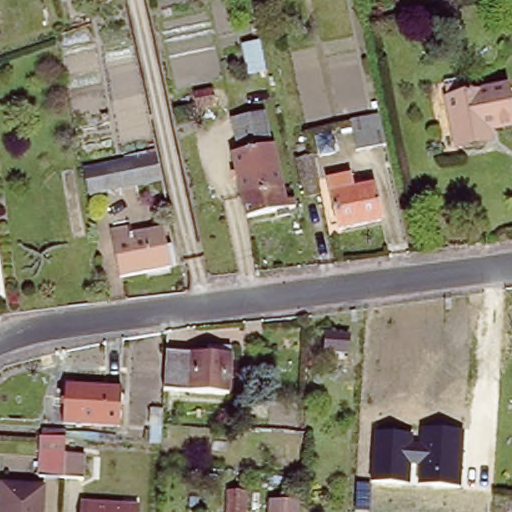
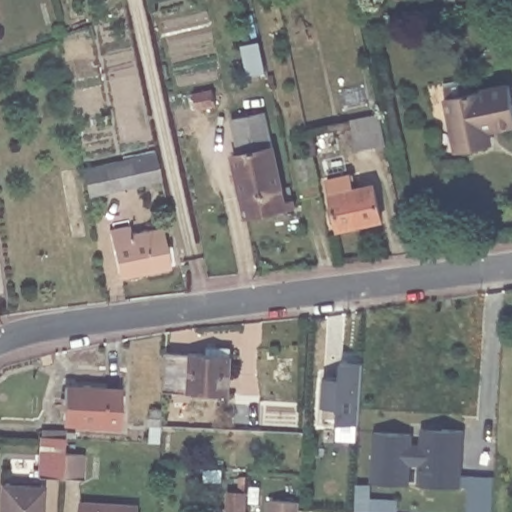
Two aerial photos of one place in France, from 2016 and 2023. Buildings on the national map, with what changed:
unchanged [(243,72),(249,71),(257,70),(258,73),(244,76),(243,72)]
unchanged [(459,138),(449,88),(447,78),(470,74),(472,83),(485,80),(510,75),(512,86),(512,116),(491,120),(494,131),(487,132),(459,138)]
unchanged [(196,95),(215,91),(218,106),(199,110),(196,95)]
unchanged [(290,196),(291,204),(243,215),(238,193),(230,151),(236,150),(229,115),(263,108),(279,185),(281,198),(290,196)]
unchanged [(388,143),(359,149),(353,120),(381,114),(388,143)]
unchanged [(110,117),(111,124),(106,125),(104,118),(110,117)]
unchanged [(118,164),(125,163),(159,155),(165,180),(130,187),(90,196),(85,171),(118,164)]
unchanged [(330,190),(314,193),(309,166),(314,165),(324,163),(325,166),(330,190)]
unchanged [(365,196),(385,192),(393,227),(350,236),(339,186),(362,182),(365,196)]
unchanged [(173,267),(124,278),(114,231),(133,227),(134,233),(164,227),(173,267)]
unchanged [(169,393),(172,353),(213,356),(213,348),(236,350),(235,357),(233,397),(169,393)]
new [(361,423),(359,437),(339,435),(344,423),(339,423),(339,408),(323,407),(324,376),(342,377),(344,363),(368,363),(364,422),(361,423)]
unchanged [(85,420),(87,385),(141,387),(139,423),(85,420)]
unchanged [(163,422),(163,427),(151,427),(152,410),(163,411),(163,422)]
unchanged [(419,483),(421,464),(411,463),(409,482),(374,480),(377,432),(411,434),(411,440),(423,441),(424,428),(464,431),(460,487),(419,483)]
unchanged [(104,477),(84,476),(63,475),(64,434),(64,429),(87,430),(87,435),(86,451),(105,452),(104,477)]
unchanged [(214,512),(214,510),(219,508),(221,483),(221,468),(231,468),(237,469),(235,512),(214,512)]
new [(460,487),(461,474),(499,477),(498,512),(470,512),(471,487),(460,487)]
unchanged [(3,512),(4,503),(2,503),(3,484),(45,486),(45,512),(3,512)]
unchanged [(301,502),(300,512),(270,512),(271,501),(301,502)]
unchanged [(133,508),(133,512),(77,512),(78,505),(133,508)]

